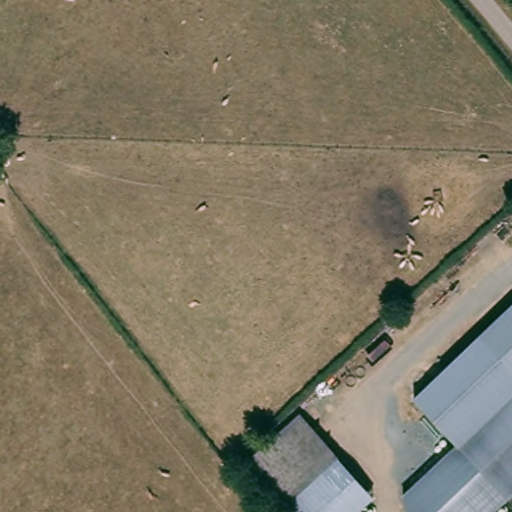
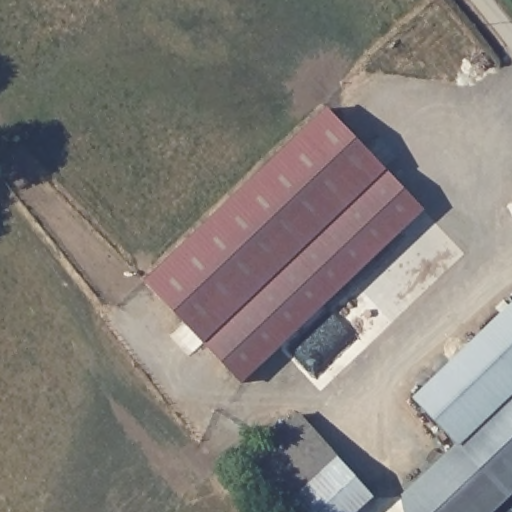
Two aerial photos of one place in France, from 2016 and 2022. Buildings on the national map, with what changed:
new [(241,383),(146,282),(328,109),(424,211),(241,383)]
unchanged [(417,393),(484,332),(512,307),(512,486),(505,492),(460,442),(457,438),(417,393)]
unchanged [(358,488),(332,512),(278,512),(229,457),(284,407),(358,488)]
unchanged [(505,492),(511,499),(497,512),(407,512),(406,493),(460,442),(505,492)]

